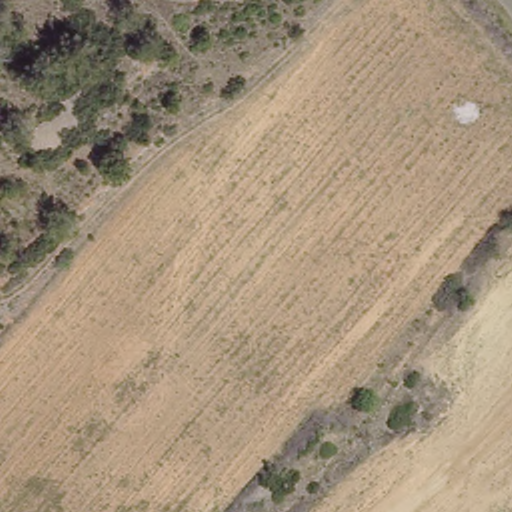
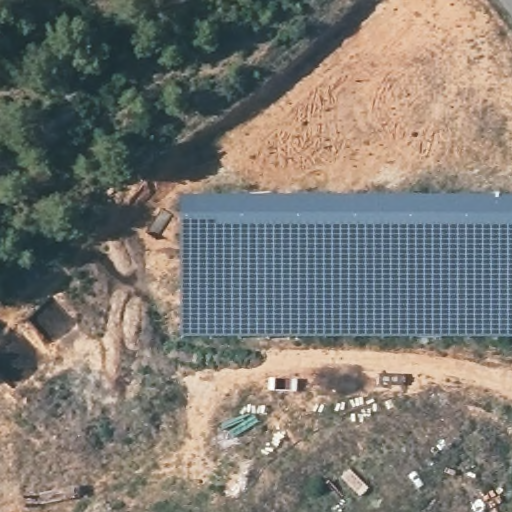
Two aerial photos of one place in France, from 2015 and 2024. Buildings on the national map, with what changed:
new [(183,197),(512,199),(512,338),(183,337),(183,197)]

